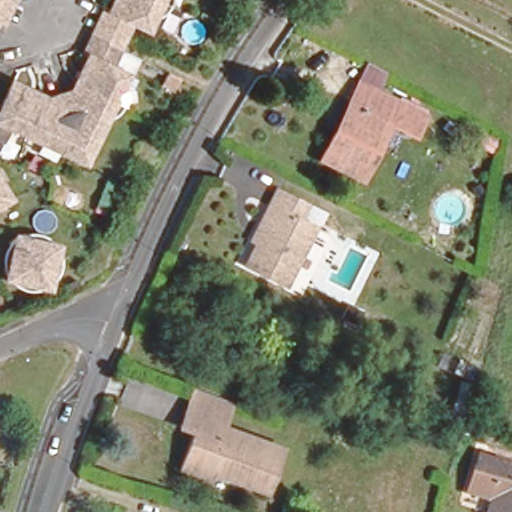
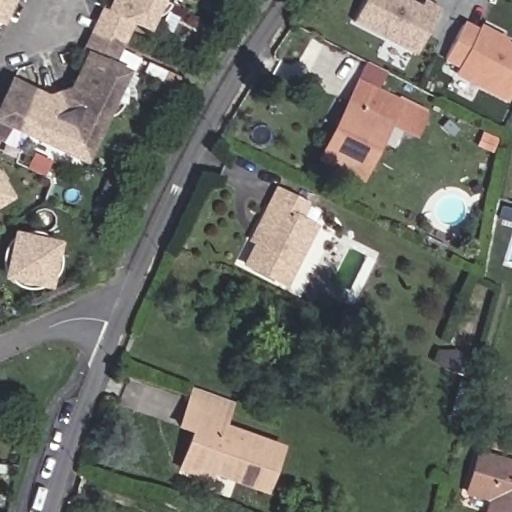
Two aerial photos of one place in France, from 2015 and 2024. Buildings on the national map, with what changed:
unchanged [(3,0),(0,8),(0,0),(3,0)]
unchanged [(122,25),(117,38),(116,37),(89,23),(95,10),(100,12),(106,0),(151,0),(136,31),(122,25)]
new [(410,0),(421,5),(423,0),(425,0),(439,7),(415,56),(352,23),(364,0),(410,0)]
new [(477,28),(479,24),(508,38),(507,42),(512,45),(512,93),(506,104),(453,75),(456,70),(442,61),(463,21),(477,28)]
unchanged [(4,80),(45,101),(61,95),(78,56),(75,55),(80,42),(108,56),(103,71),(116,77),(84,144),(54,153),(1,123),(0,126),(0,88),(4,80)]
unchanged [(408,146),(381,127),(352,176),(313,151),(358,74),(368,58),(381,68),(373,84),(369,93),(393,107),(421,123),(408,146)]
unchanged [(270,179),(300,199),(293,214),(305,221),(274,271),(236,248),(270,194),(264,190),(270,179)]
unchanged [(7,195),(0,200),(0,185),(7,195)]
unchanged [(48,246),(39,285),(0,274),(8,236),(48,246)]
unchanged [(221,414),(277,442),(262,482),(206,457),(201,466),(176,453),(191,416),(178,411),(190,379),(218,389),(228,392),(221,414)]
unchanged [(487,497),(464,490),(475,452),(512,463),(512,512),(484,512),(485,506),(487,497)]

